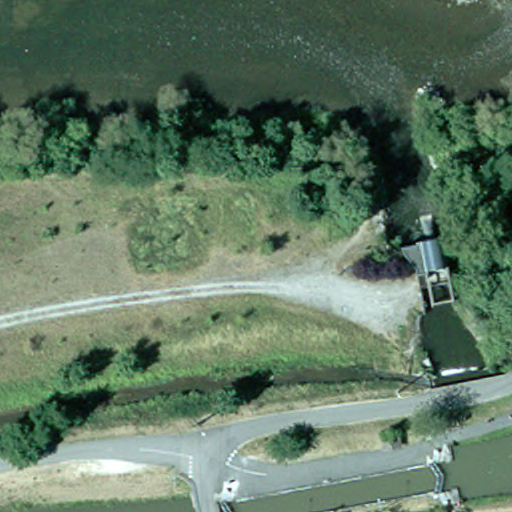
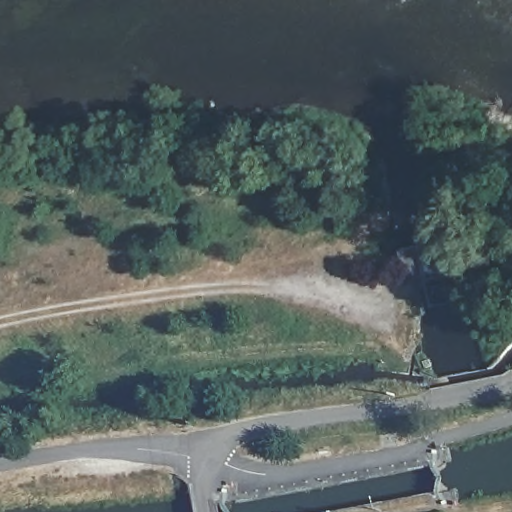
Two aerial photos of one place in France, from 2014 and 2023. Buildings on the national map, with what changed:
unchanged [(430,243),(428,239),(434,238),(437,237),(448,235),(451,251),(453,258),(454,268),(437,271),(437,275),(421,278),(411,249),(430,243)]

